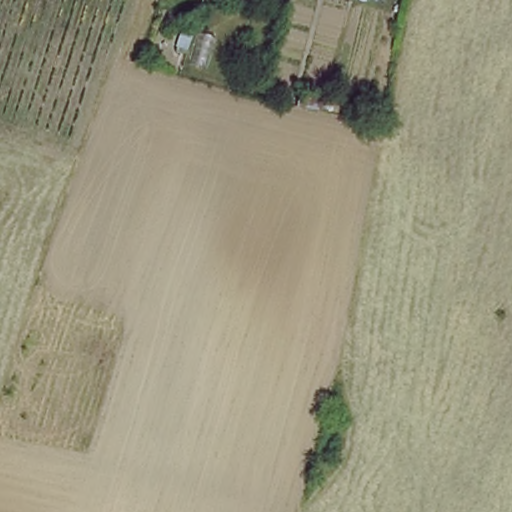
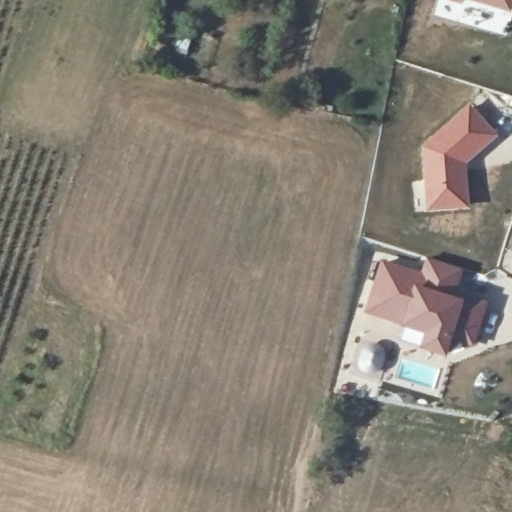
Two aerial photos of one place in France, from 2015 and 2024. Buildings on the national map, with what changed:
new [(511,13),(447,0),(512,0),(512,8),(511,13)]
new [(468,100),(499,135),(466,164),(469,209),(424,212),(420,156),(418,145),(468,100)]
new [(474,344),(461,339),(463,333),(456,330),(446,358),(416,347),(420,336),(361,314),(379,259),(421,271),(425,256),(464,268),(457,295),(466,295),(489,300),(474,344)]

